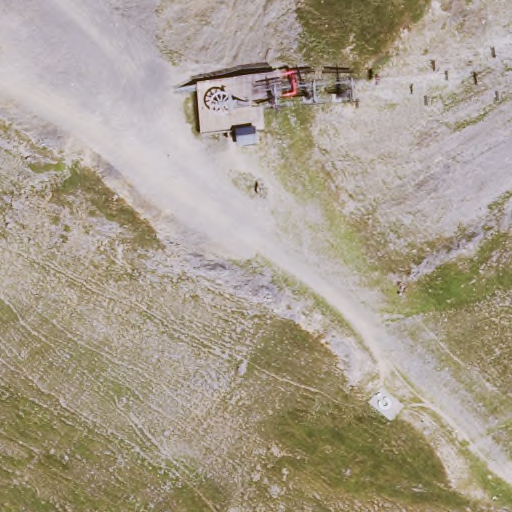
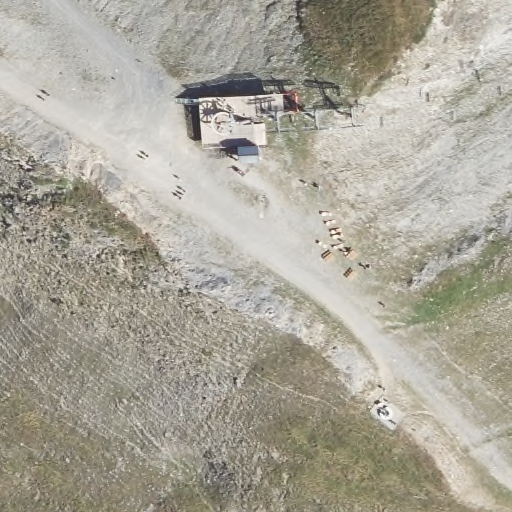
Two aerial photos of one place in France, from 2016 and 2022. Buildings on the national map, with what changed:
unchanged [(239,134),(262,134),(263,156),(240,156),(239,134)]

